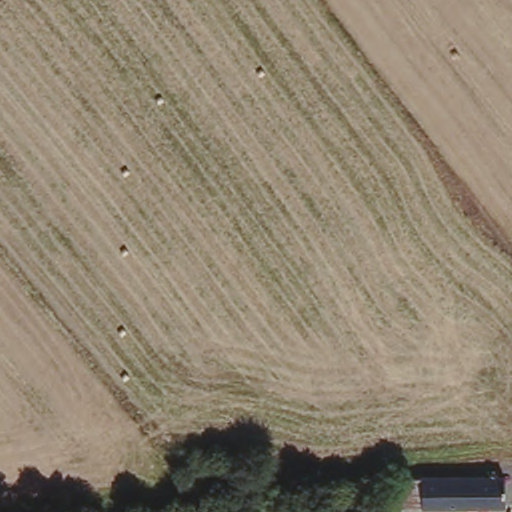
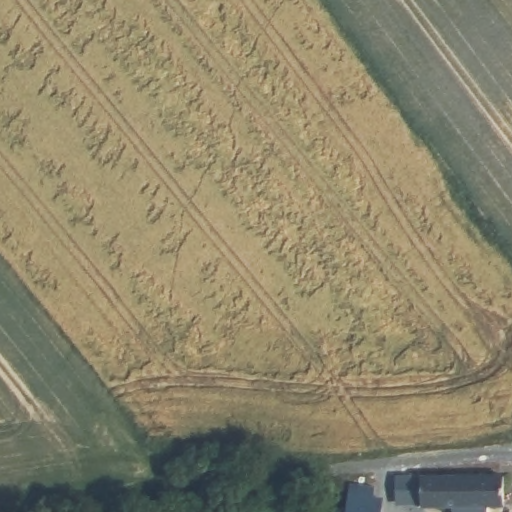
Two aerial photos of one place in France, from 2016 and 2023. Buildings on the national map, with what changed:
unchanged [(502,472),(503,499),(410,502),(409,478),(502,472)]
new [(374,496),(384,497),(382,512),(346,512),(350,484),(375,487),(374,496)]

